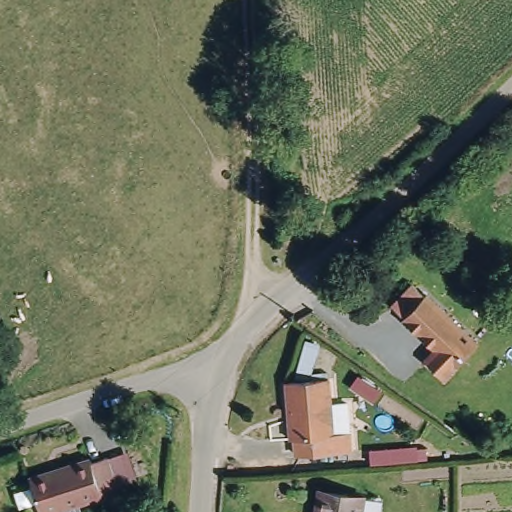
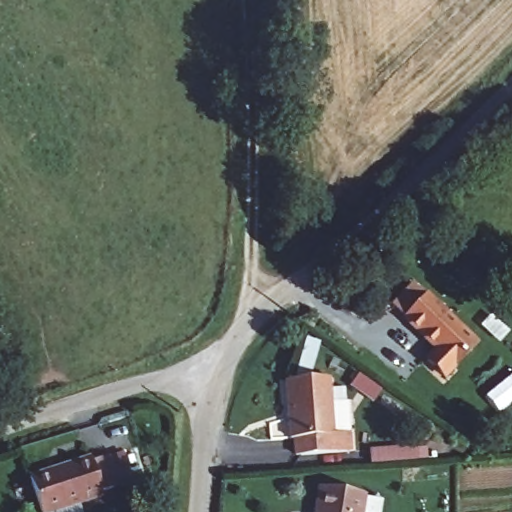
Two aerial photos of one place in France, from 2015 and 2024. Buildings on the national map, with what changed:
unchanged [(421,363),(432,355),(397,302),(422,285),(470,357),(433,382),(421,363)]
unchanged [(282,373),(325,370),(330,429),(344,428),(344,444),(292,448),(292,432),(287,432),(282,373)]
unchanged [(112,454),(119,484),(105,487),(106,490),(46,505),(37,468),(97,454),(97,457),(112,454)]
unchanged [(317,489),(356,487),(357,512),(317,512),(317,489)]

